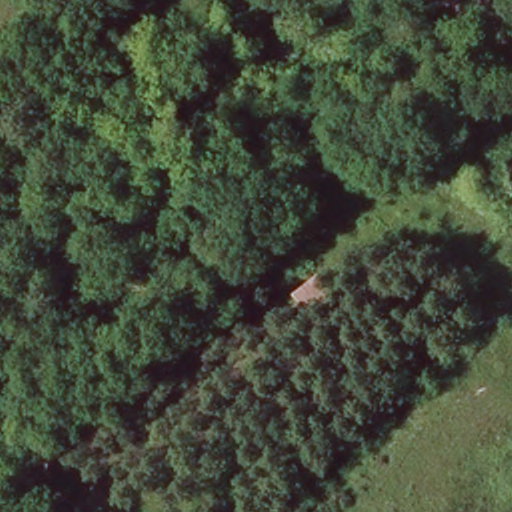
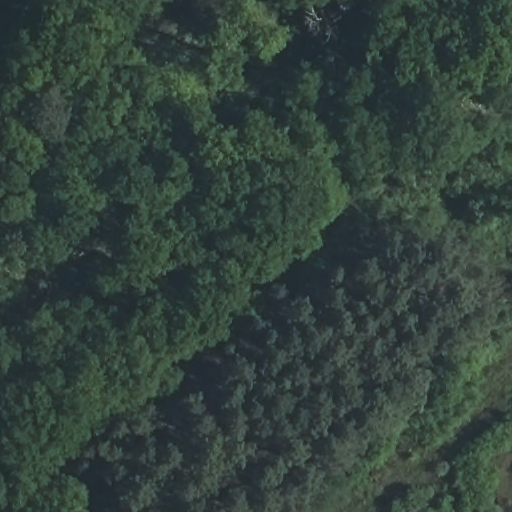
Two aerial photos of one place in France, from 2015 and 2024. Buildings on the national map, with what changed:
unchanged [(310,314),(294,293),(319,274),(333,295),(310,314)]

